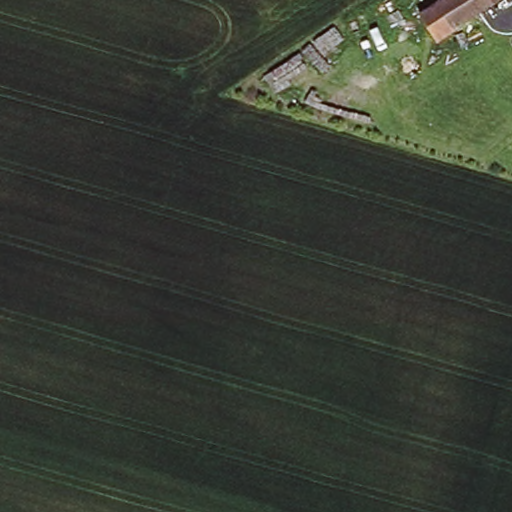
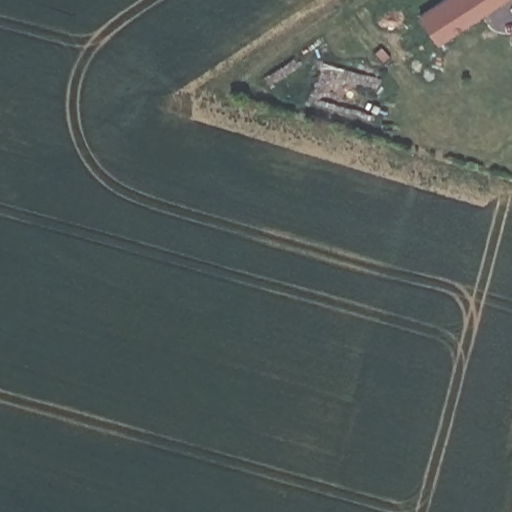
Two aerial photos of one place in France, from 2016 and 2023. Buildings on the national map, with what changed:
unchanged [(434,47),(416,21),(452,0),(501,0),(503,5),(434,47)]
unchanged [(503,5),(501,0),(511,0),(503,5)]

